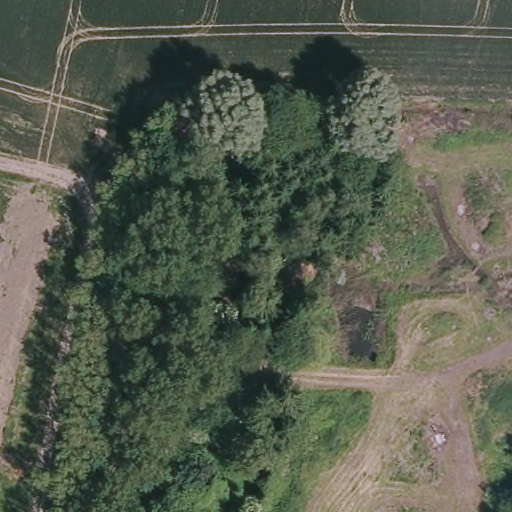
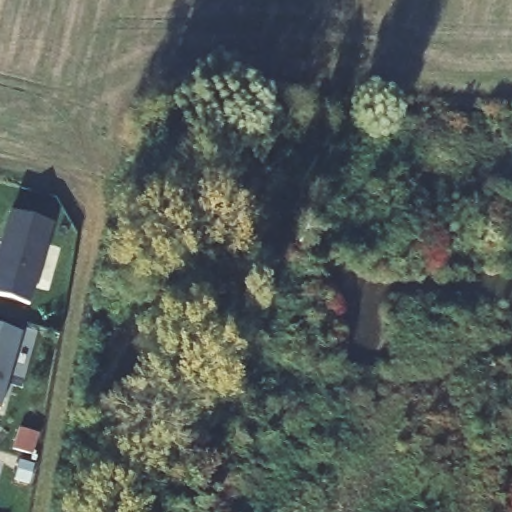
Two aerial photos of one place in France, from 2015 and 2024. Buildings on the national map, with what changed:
new [(52,223),(29,305),(0,296),(0,249),(11,211),(52,223)]
new [(0,408),(0,327),(22,333),(0,408)]

